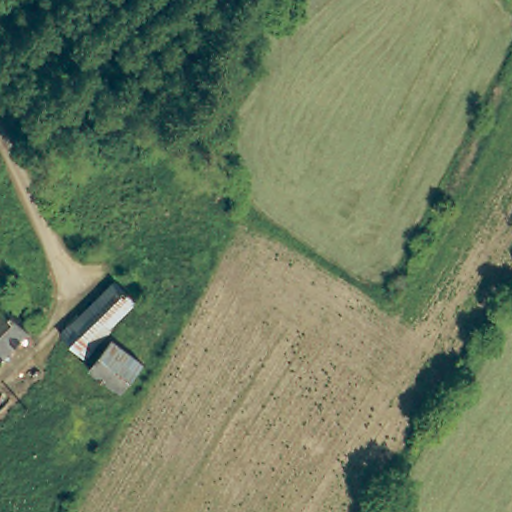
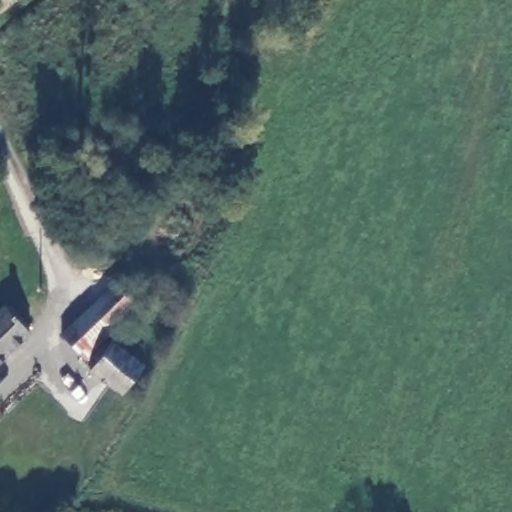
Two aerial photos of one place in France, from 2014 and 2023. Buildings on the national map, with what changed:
unchanged [(112,325),(115,329),(88,353),(66,327),(125,276),(143,299),(112,325)]
unchanged [(0,315),(8,307),(28,325),(0,356),(0,315)]
unchanged [(114,342),(139,367),(115,392),(90,366),(114,342)]

